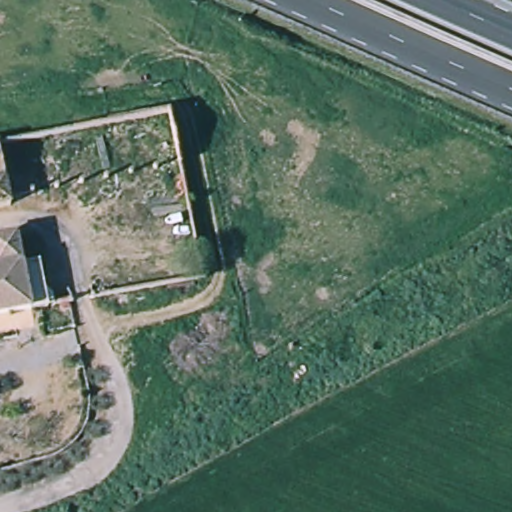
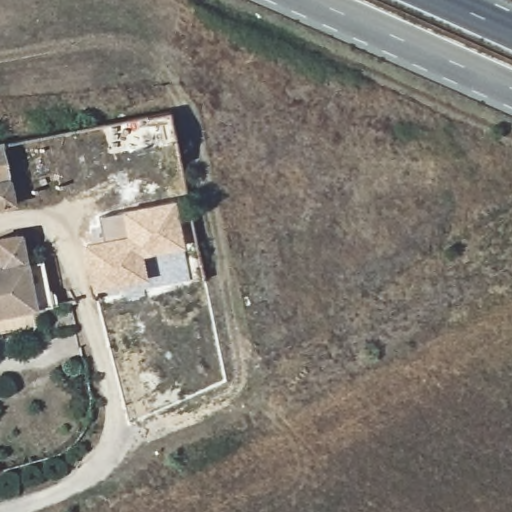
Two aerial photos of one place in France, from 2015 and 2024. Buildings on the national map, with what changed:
unchanged [(12,206),(0,208),(0,147),(12,206)]
new [(143,256),(148,281),(95,291),(85,244),(104,239),(100,216),(123,211),(123,210),(176,199),(184,247),(143,256)]
unchanged [(17,241),(23,271),(40,268),(45,293),(47,295),(51,299),(52,300),(53,302),(55,312),(32,316),(0,321),(0,244),(17,241)]

